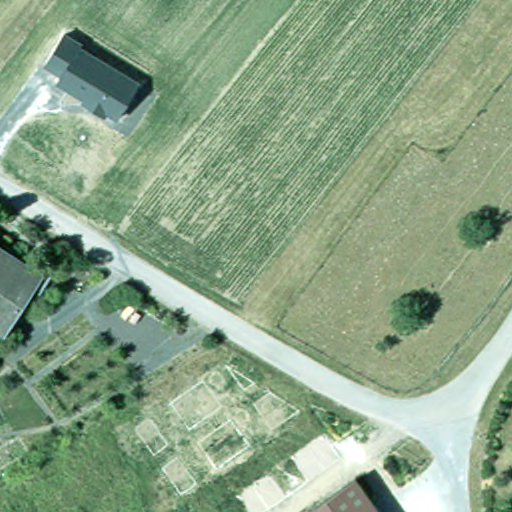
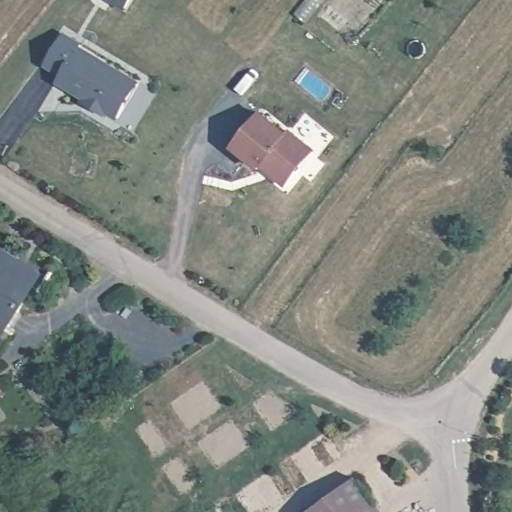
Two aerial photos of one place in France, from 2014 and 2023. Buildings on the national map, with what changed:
new [(107,0),(133,0),(126,11),(107,0)]
unchanged [(84,40),(82,46),(143,81),(121,119),(55,82),(60,75),(42,65),(62,30),(84,40)]
new [(288,132),(290,129),(315,148),(287,186),(262,167),(259,171),(232,149),(261,112),(288,132)]
unchanged [(0,326),(0,252),(12,259),(35,272),(29,283),(3,328),(0,326)]
unchanged [(382,512),(307,512),(357,476),(382,512)]

